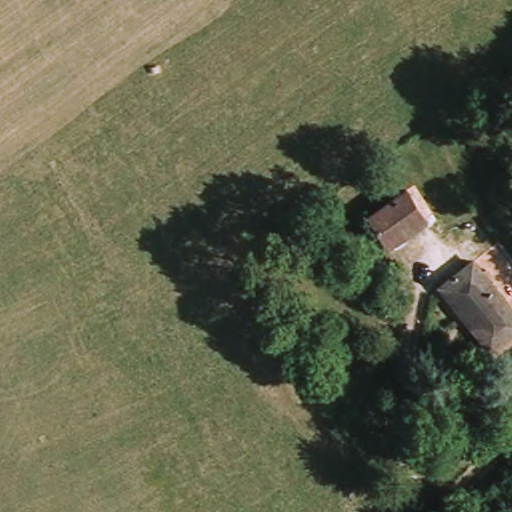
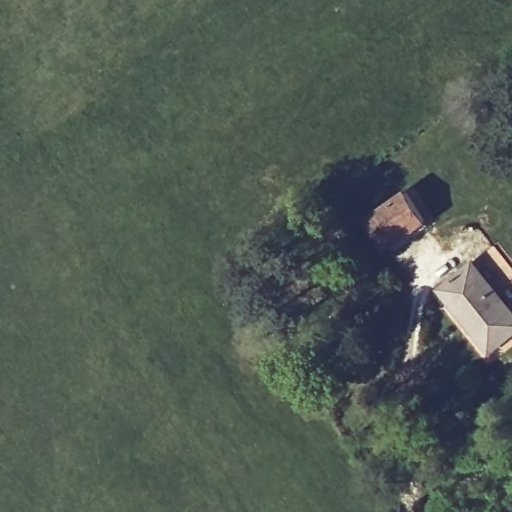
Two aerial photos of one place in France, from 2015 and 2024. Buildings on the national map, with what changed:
unchanged [(373,216),(407,192),(430,222),(411,237),(397,247),(373,216)]
unchanged [(442,287),(477,261),(512,306),(512,336),(491,352),(442,287)]

